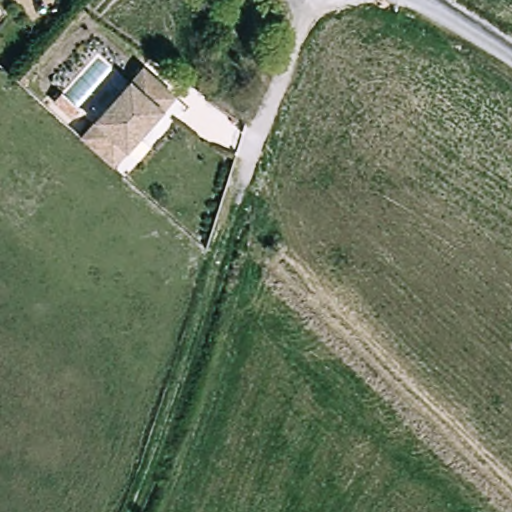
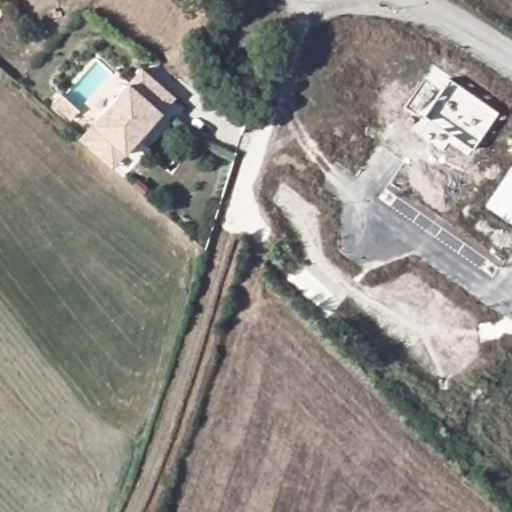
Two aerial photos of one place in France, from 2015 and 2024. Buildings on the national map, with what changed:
unchanged [(138,72),(171,101),(112,167),(111,169),(78,141),(79,140),(138,72)]
new [(472,150),(424,116),(449,77),(498,112),(472,150)]
new [(486,207),(512,168),(512,224),(486,207)]

